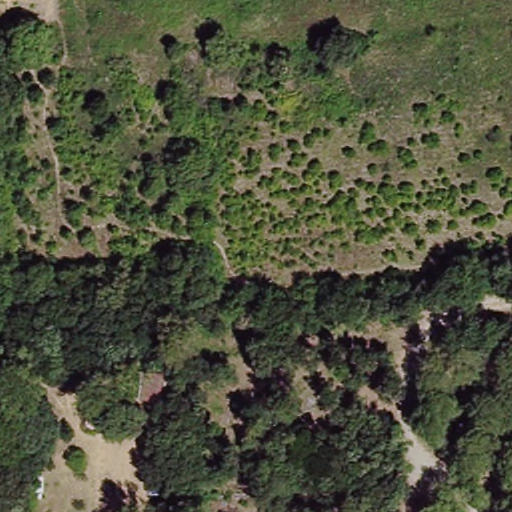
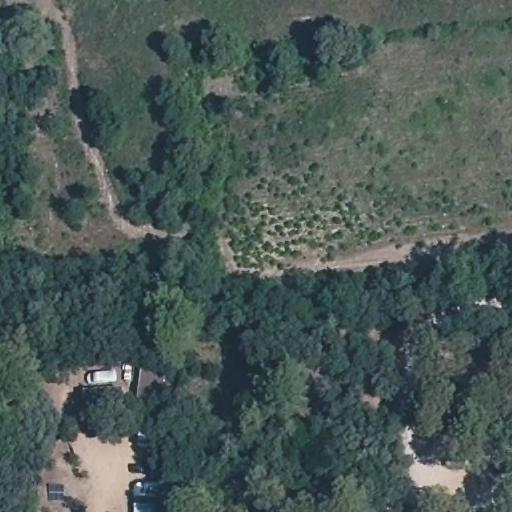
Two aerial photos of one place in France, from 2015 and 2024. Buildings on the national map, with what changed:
unchanged [(175,376),(170,408),(145,405),(148,373),(175,376)]

